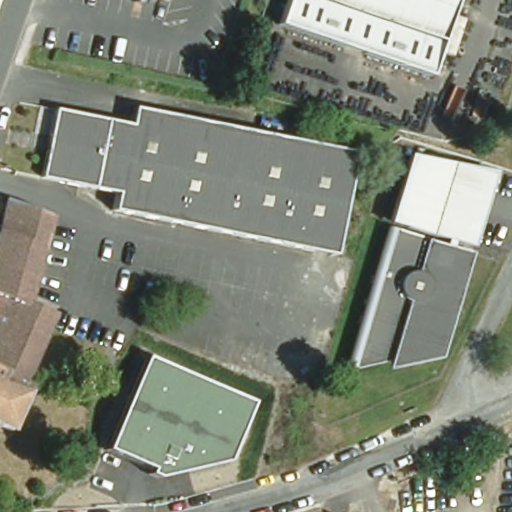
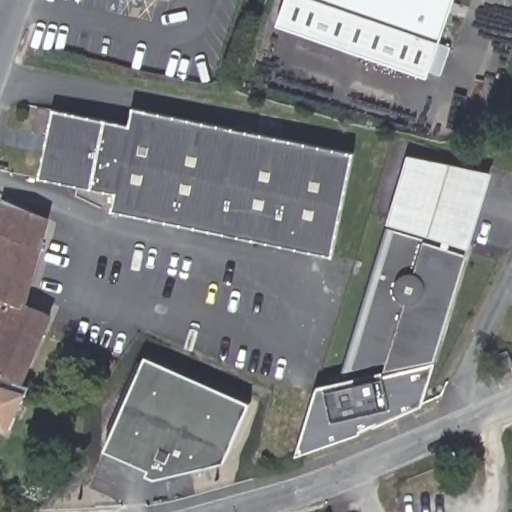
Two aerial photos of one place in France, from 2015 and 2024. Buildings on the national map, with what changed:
unchanged [(169,3),(160,0),(169,0),(169,3)]
unchanged [(427,85),(375,67),(280,36),(291,0),(455,0),(427,85)]
unchanged [(65,120),(129,133),(132,116),(204,131),(352,162),(347,189),(331,265),(247,247),(199,237),(174,232),(111,219),(115,201),(60,190),(36,185),(44,151),(51,117),(65,120)]
unchanged [(391,234),(411,156),(495,172),(468,255),(391,234)]
unchanged [(0,286),(0,220),(5,200),(50,219),(27,298),(0,286)]
unchanged [(468,255),(442,341),(357,370),(350,372),(351,368),(391,234),(468,255)]
demolished [(215,305),(197,298),(202,283),(220,288),(215,305)]
unchanged [(27,298),(24,310),(49,320),(16,394),(0,392),(0,286),(27,298)]
unchanged [(490,357),(490,355),(491,355),(508,348),(512,357),(512,368),(497,374),(490,357)]
unchanged [(226,462),(150,478),(149,468),(105,451),(145,357),(250,403),(226,462)]
new [(363,431),(295,456),(315,387),(436,361),(423,405),(363,431)]
unchanged [(16,394),(25,395),(6,436),(0,433),(0,392),(16,394)]

